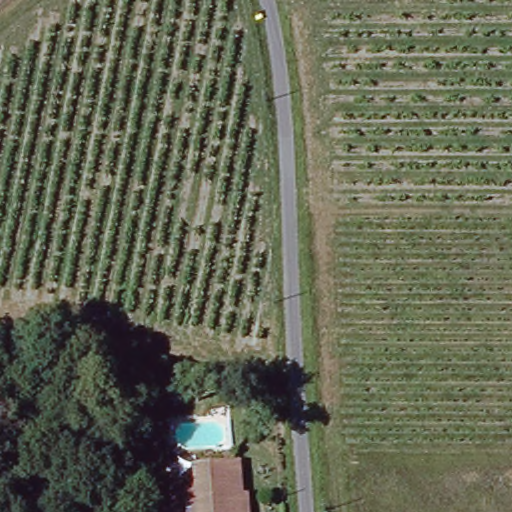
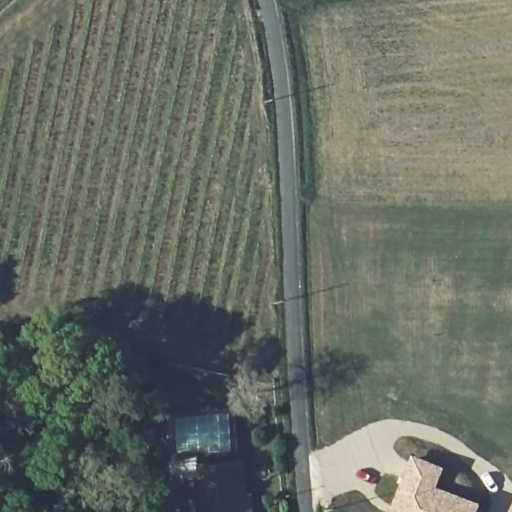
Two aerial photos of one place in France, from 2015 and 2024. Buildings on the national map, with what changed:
new [(408,459),(434,471),(426,489),(470,507),(468,512),(388,512),(408,459)]
unchanged [(167,502),(166,503),(162,479),(172,479),(173,483),(190,481),(188,468),(231,462),(236,512),(168,512),(167,502)]

